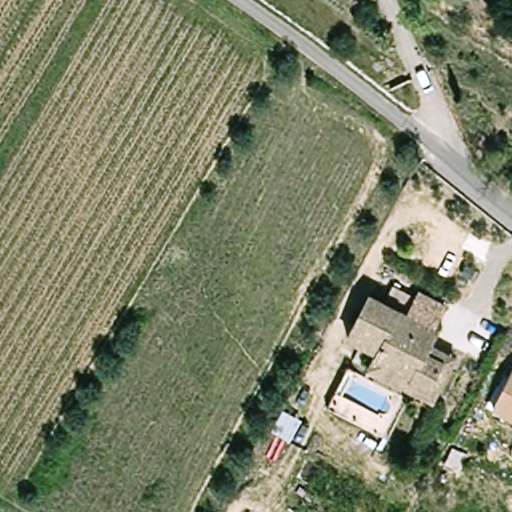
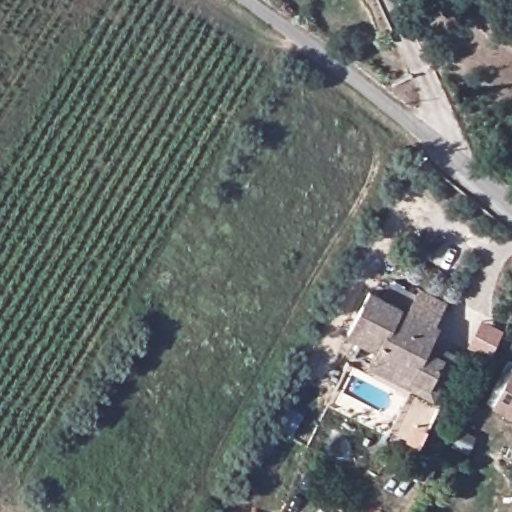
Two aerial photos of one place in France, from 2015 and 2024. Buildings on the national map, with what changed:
unchanged [(425,346),(443,356),(423,394),(374,370),(382,354),(349,336),(371,292),(407,309),(421,288),(446,302),(425,346)]
unchanged [(497,406),(512,372),(512,414),(497,406)]

